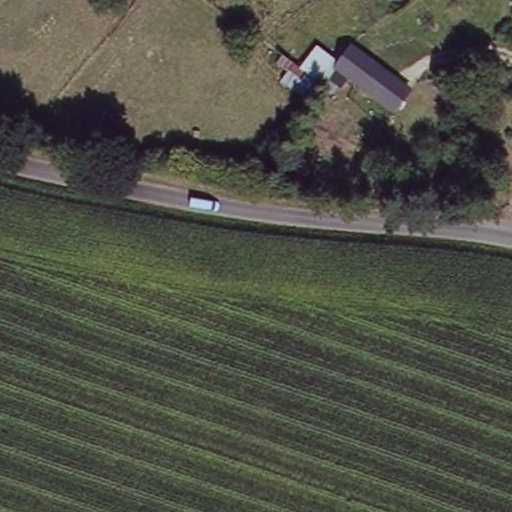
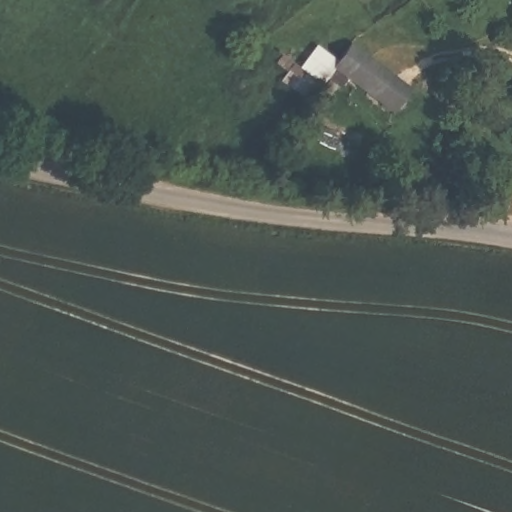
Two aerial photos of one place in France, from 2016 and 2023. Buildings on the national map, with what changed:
unchanged [(409,84),(395,107),(348,72),(335,62),(350,40),(409,84)]
unchanged [(313,45),(335,62),(322,81),(302,64),(313,45)]

